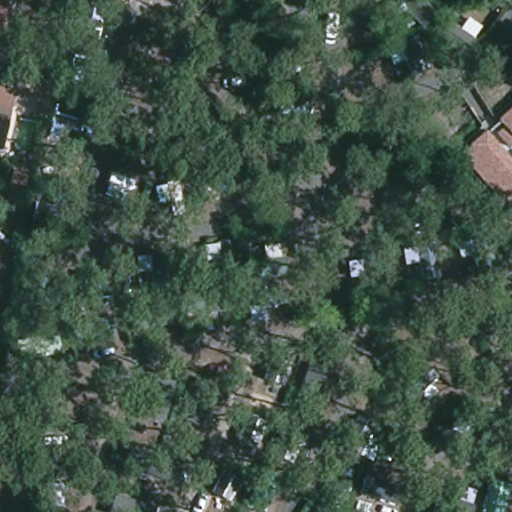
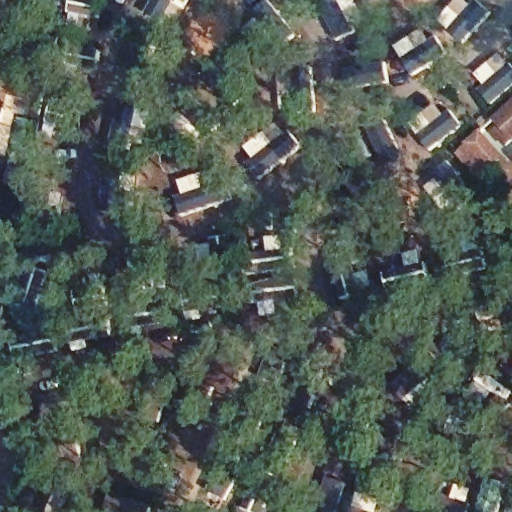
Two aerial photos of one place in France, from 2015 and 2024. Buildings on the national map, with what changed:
unchanged [(0,17),(0,0),(2,0),(0,17)]
unchanged [(15,109),(7,107),(10,92),(0,90),(0,69),(22,72),(18,93),(18,95),(15,109)]
unchanged [(512,108),(512,132),(500,119),(512,108)]
unchanged [(13,124),(9,143),(0,141),(0,110),(15,112),(13,124)]
unchanged [(512,208),(462,154),(486,132),(512,160),(512,208)]

